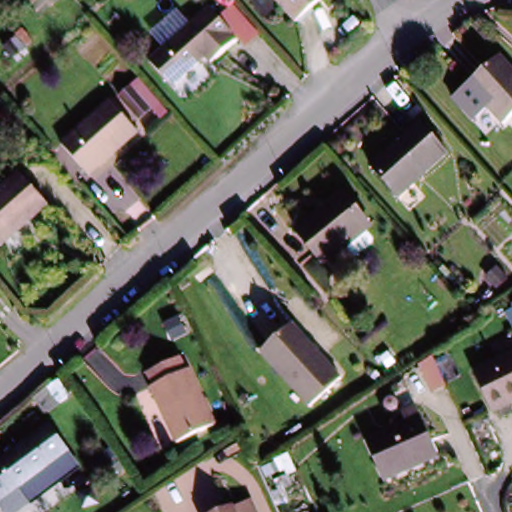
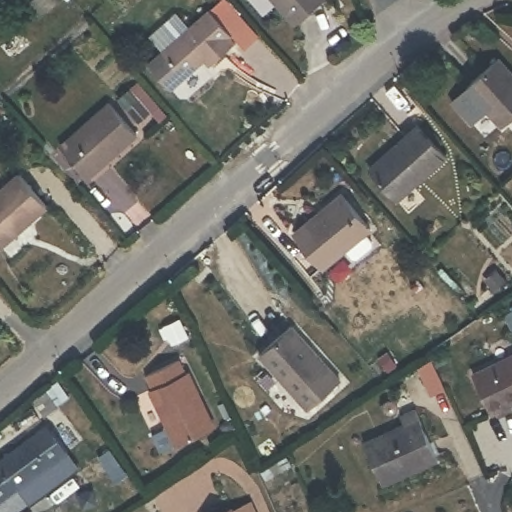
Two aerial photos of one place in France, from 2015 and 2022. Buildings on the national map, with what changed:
unchanged [(294,26),(269,0),(324,0),(294,26)]
unchanged [(233,30),(229,34),(236,41),(213,60),(208,55),(173,86),(151,64),(212,7),(233,30)]
unchanged [(512,73),(512,121),(503,129),(467,87),(501,60),(512,73)]
unchanged [(152,114),(141,124),(123,103),(133,93),(152,114)]
unchanged [(139,135),(89,180),(63,150),(113,106),(139,135)]
unchanged [(449,160),(398,201),(371,171),(422,129),(449,160)]
unchanged [(0,247),(0,194),(23,175),(48,205),(0,247)]
unchanged [(374,226),(328,265),(301,236),(347,195),(374,226)]
unchanged [(173,343),(163,318),(183,311),(193,335),(173,343)]
unchanged [(343,381),(311,410),(266,360),(300,332),(343,381)]
unchanged [(496,415),(479,373),(512,359),(512,409),(496,415)]
unchanged [(178,446),(152,390),(156,389),(150,375),(183,362),(188,375),(192,374),(218,430),(178,446)]
unchanged [(46,415),(33,400),(58,380),(70,400),(46,415)]
unchanged [(437,457),(384,481),(364,443),(418,420),(437,457)]
unchanged [(2,512),(0,509),(0,454),(46,422),(83,472),(23,512),(2,512)]
unchanged [(238,512),(208,512),(233,500),(238,512)]

